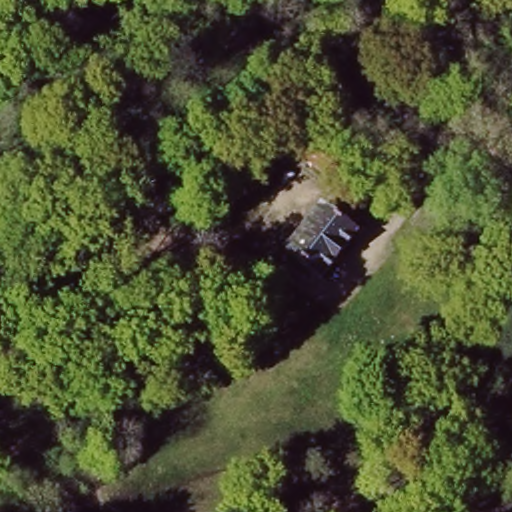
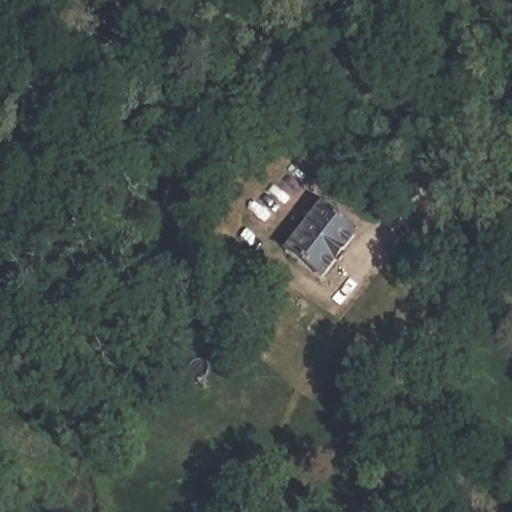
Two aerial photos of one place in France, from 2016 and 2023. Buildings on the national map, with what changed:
unchanged [(191,149),(260,151),(256,187),(186,188),(191,149)]
unchanged [(315,201),(363,241),(324,286),(281,254),(315,201)]
unchanged [(208,311),(250,312),(246,350),(208,350),(208,311)]

